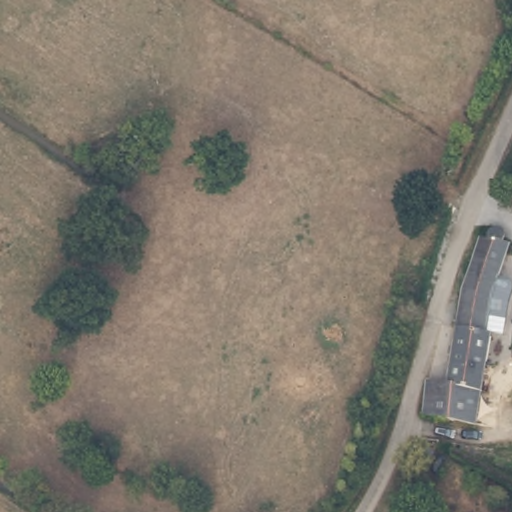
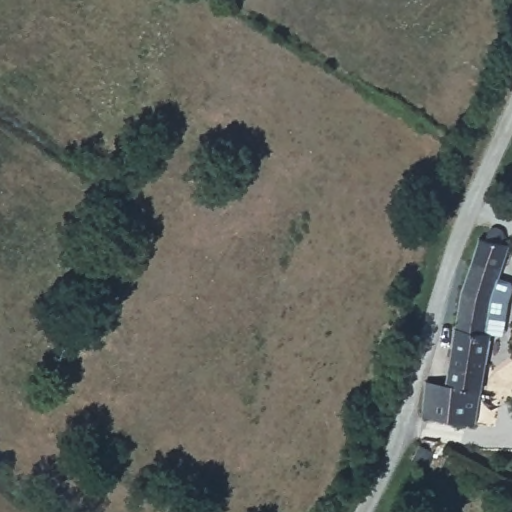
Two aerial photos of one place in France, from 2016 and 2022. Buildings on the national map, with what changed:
unchanged [(460,286),(463,275),(468,263),(478,235),(484,237),(487,227),(494,225),(503,227),(504,232),(500,241),(506,244),(484,316),(481,329),(487,331),(474,422),(421,415),(425,378),(447,381),(460,286)]
unchanged [(432,450),(424,466),(412,460),(420,444),(432,450)]

